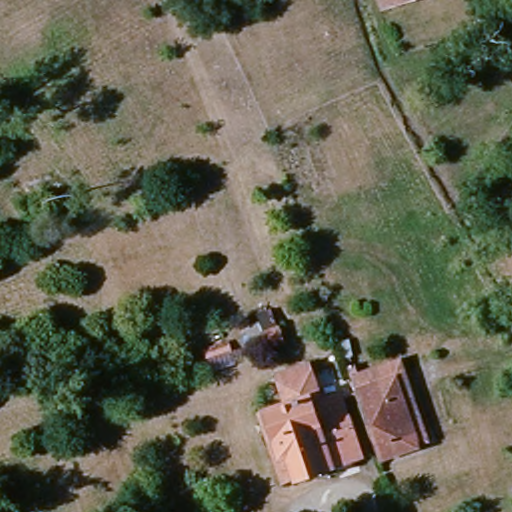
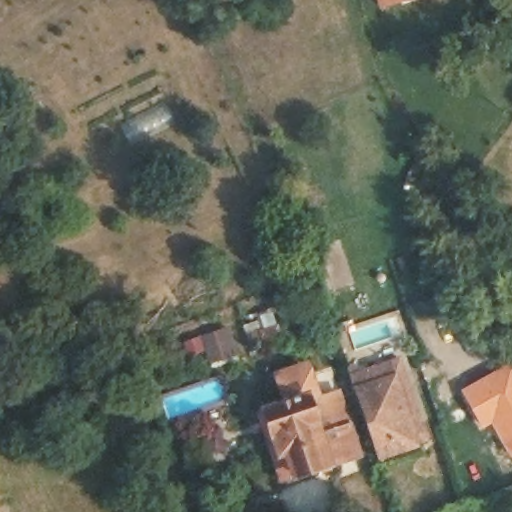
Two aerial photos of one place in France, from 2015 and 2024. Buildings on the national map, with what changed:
unchanged [(382,6),(380,0),(401,0),(382,6)]
unchanged [(487,238),(510,223),(512,226),(512,246),(497,255),(487,238)]
unchanged [(267,331),(285,327),(290,347),(273,352),(267,331)]
new [(512,459),(490,424),(482,428),(460,389),(512,360),(512,459)]
unchanged [(271,408),(290,402),(282,373),(294,369),(297,382),(311,377),(317,403),(337,466),(280,483),(273,457),(260,412),(271,408)]
unchanged [(397,481),(384,487),(349,390),(399,374),(405,394),(424,448),(413,452),(390,459),(397,481)]
unchanged [(330,400),(343,396),(363,466),(338,474),(337,466),(317,403),(330,400)]

